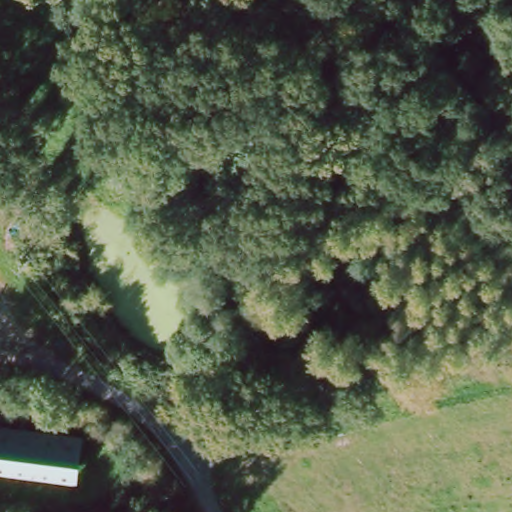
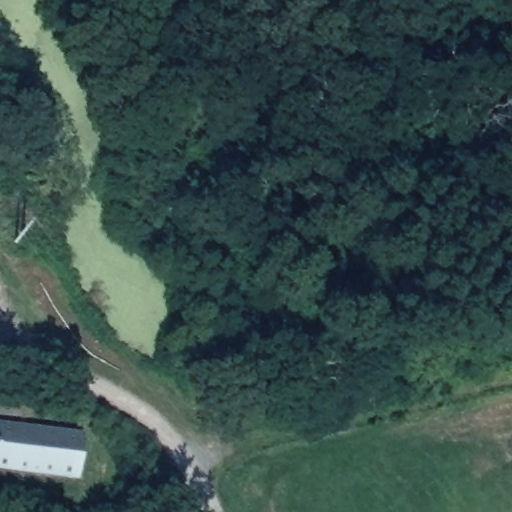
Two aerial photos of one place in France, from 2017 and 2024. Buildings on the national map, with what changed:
unchanged [(79,435),(73,480),(0,472),(0,425),(79,435)]

